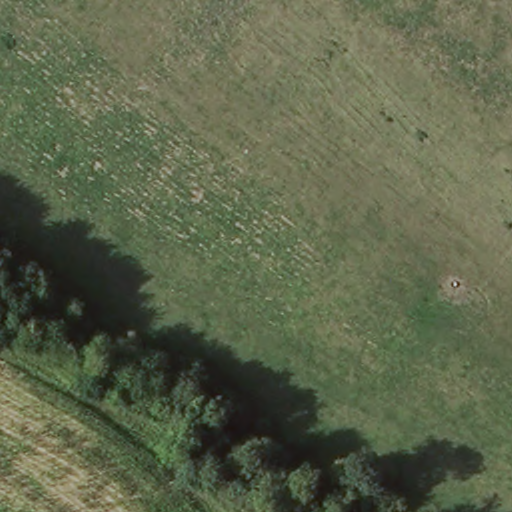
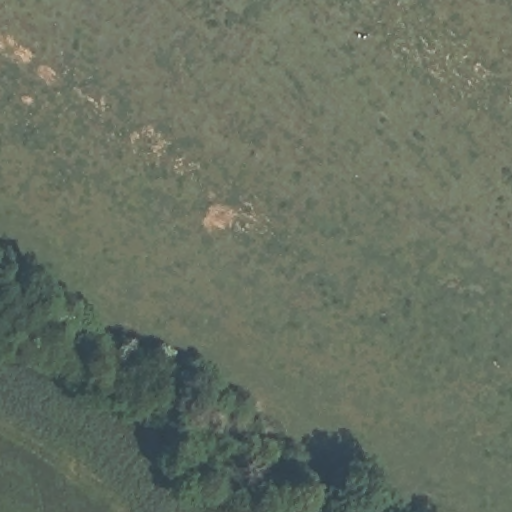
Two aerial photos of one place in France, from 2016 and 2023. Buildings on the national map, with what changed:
[]

